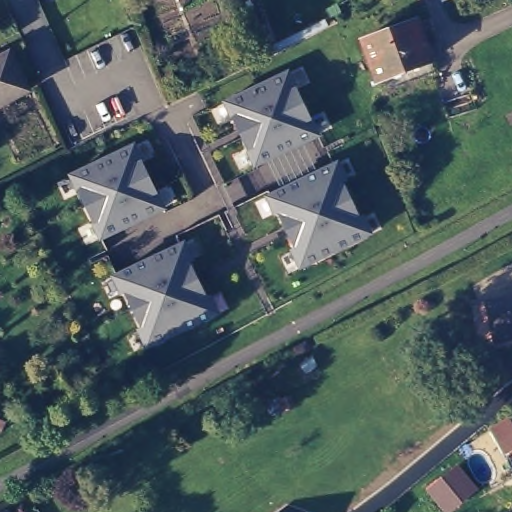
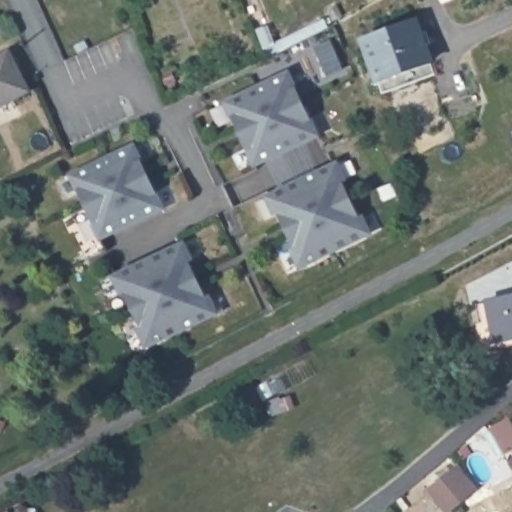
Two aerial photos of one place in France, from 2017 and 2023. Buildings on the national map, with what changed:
unchanged [(409,24),(423,64),(372,80),(358,40),(409,24)]
unchanged [(32,91),(0,108),(0,60),(13,54),(32,91)]
unchanged [(251,170),(216,100),(285,69),(318,138),(251,170)]
unchanged [(95,243),(63,174),(131,141),(165,211),(95,243)]
unchanged [(296,272),(260,196),(334,160),(369,236),(296,272)]
unchanged [(145,352),(107,277),(181,241),(216,316),(145,352)]
unchanged [(475,349),(473,306),(486,304),(487,301),(512,296),(512,344),(475,349)]
unchanged [(503,457),(489,430),(511,418),(512,419),(512,452),(503,457)]
unchanged [(445,512),(425,491),(457,466),(477,492),(453,512),(445,512)]

